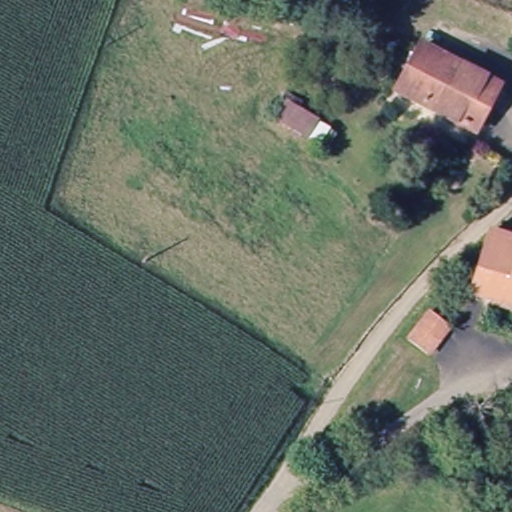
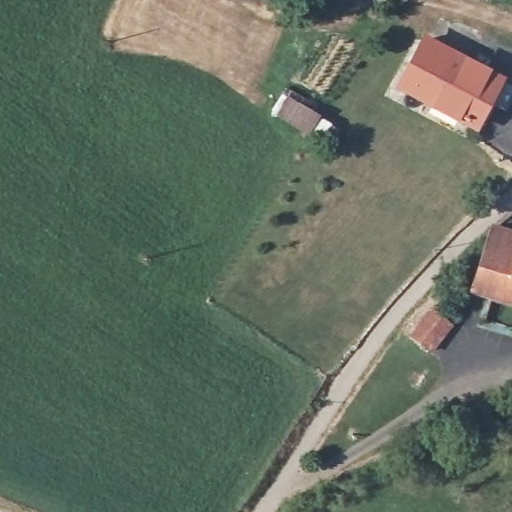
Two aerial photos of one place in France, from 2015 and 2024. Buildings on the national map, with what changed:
unchanged [(401,88),(424,39),(497,78),(473,124),(401,88)]
unchanged [(287,96),(333,123),(320,146),(274,119),(287,96)]
unchanged [(512,230),(496,226),(512,213),(512,230)]
unchanged [(496,226),(512,230),(512,302),(475,288),(493,229),(496,226)]
unchanged [(455,322),(435,353),(410,340),(431,308),(455,322)]

